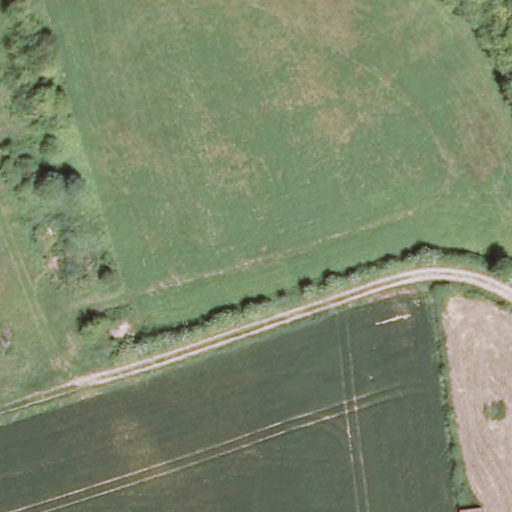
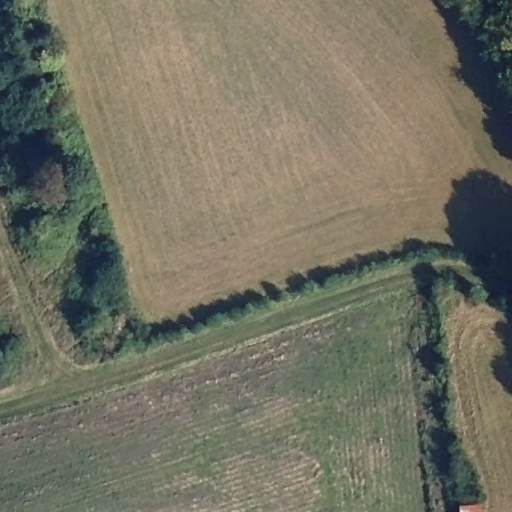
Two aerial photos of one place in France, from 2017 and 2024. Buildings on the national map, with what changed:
unchanged [(457,507),(480,506),(480,512),(457,512),(457,507)]

